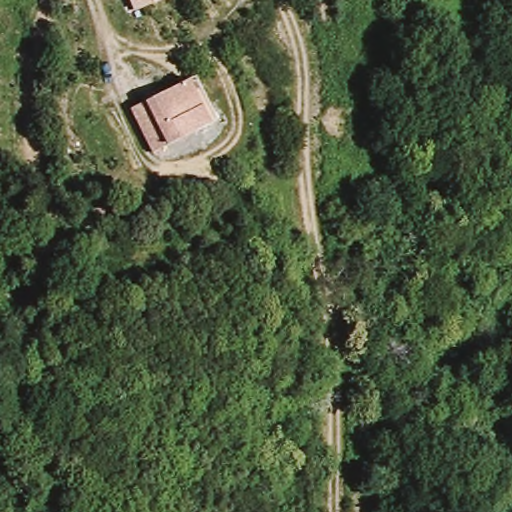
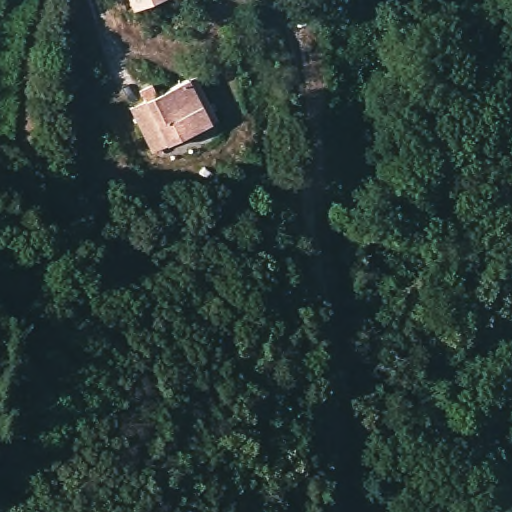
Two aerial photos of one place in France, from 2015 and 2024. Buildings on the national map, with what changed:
unchanged [(131,0),(146,0),(133,5),(131,0)]
unchanged [(200,69),(223,117),(155,153),(130,108),(200,69)]

